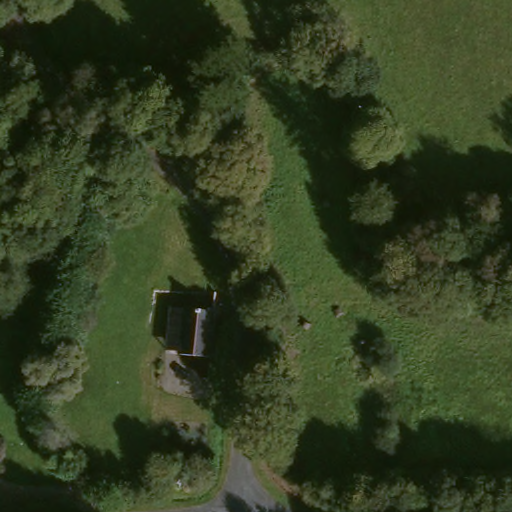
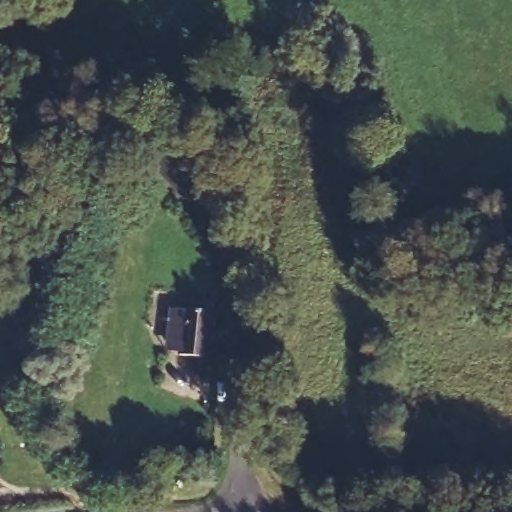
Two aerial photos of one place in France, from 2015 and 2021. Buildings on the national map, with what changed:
unchanged [(207,363),(175,361),(180,316),(212,318),(207,363)]

